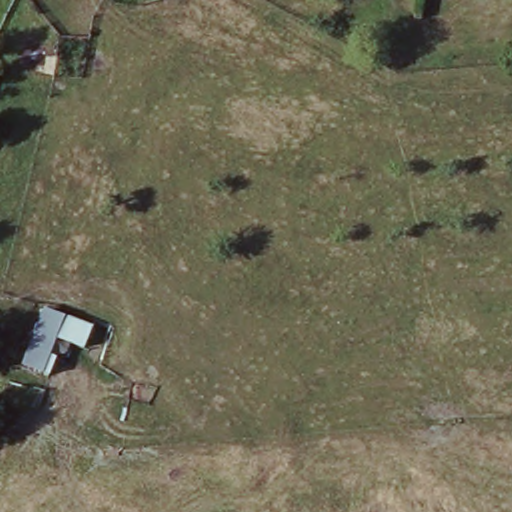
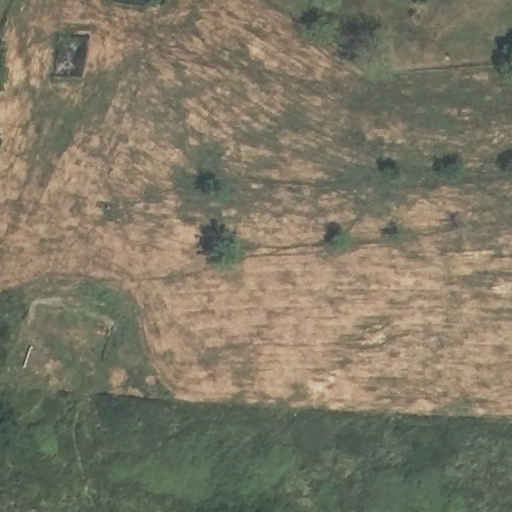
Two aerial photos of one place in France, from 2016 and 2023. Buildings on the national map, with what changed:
demolished [(40,309),(91,330),(81,354),(53,340),(46,359),(53,362),(46,379),(19,370),(40,309)]

